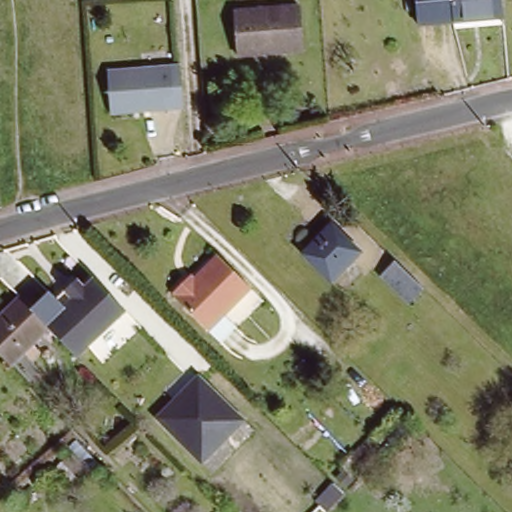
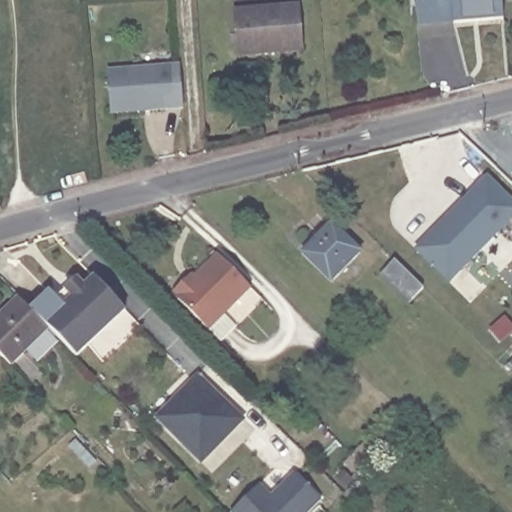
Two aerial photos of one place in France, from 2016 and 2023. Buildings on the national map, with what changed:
unchanged [(421,0),(508,0),(509,13),(442,19),(423,21),(421,0)]
unchanged [(310,57),(245,65),(241,23),(305,16),(310,57)]
unchanged [(105,75),(180,67),(184,111),(109,117),(105,75)]
new [(487,177),(512,200),(512,221),(450,284),(415,251),(487,177)]
unchanged [(341,225),(370,252),(341,283),(312,255),(341,225)]
unchanged [(424,290),(410,304),(381,276),(395,262),(424,290)]
unchanged [(199,282),(217,263),(250,296),(232,314),(199,282)]
unchanged [(49,290),(57,299),(80,277),(86,285),(95,277),(127,312),(77,357),(54,332),(29,306),(49,290)]
unchanged [(176,305),(177,303),(172,300),(175,297),(185,287),(190,282),(194,287),(199,282),(232,314),(223,322),(213,333),(209,337),(176,305)]
unchanged [(2,351),(0,349),(0,324),(25,301),(54,332),(17,367),(2,351)]
unchanged [(247,422),(202,466),(152,417),(199,375),(247,422)]
new [(234,512),(261,485),(272,496),(294,473),(323,502),(312,512),(234,512)]

